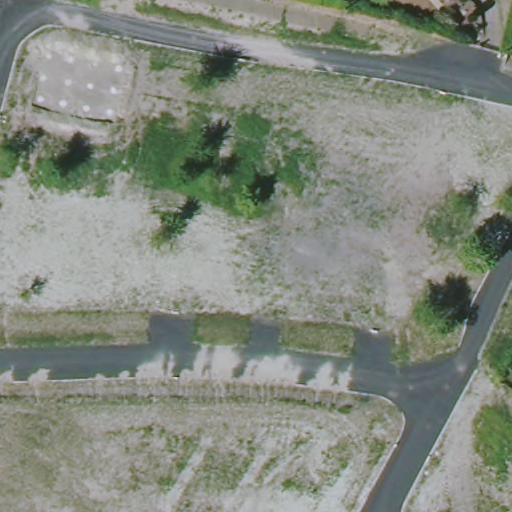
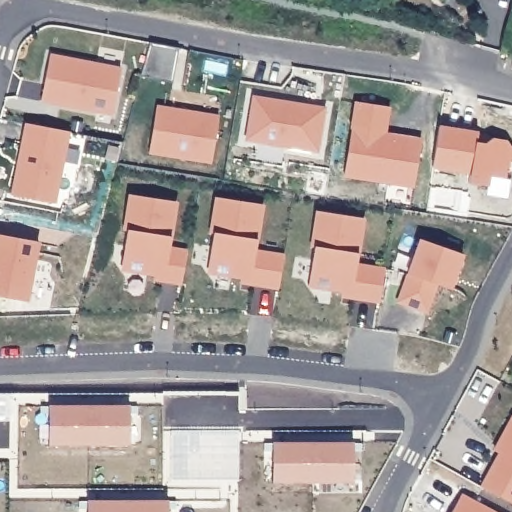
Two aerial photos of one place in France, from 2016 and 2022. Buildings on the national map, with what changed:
new [(150,41),(179,46),(170,80),(141,72),(150,41)]
new [(50,54),(120,67),(112,112),(41,99),(50,54)]
new [(253,95),(324,107),(317,150),(246,138),(253,95)]
new [(390,108),(386,132),(420,139),(413,186),(343,176),(355,102),(390,108)]
new [(156,105),(218,115),(211,161),(149,151),(156,105)]
new [(69,132),(56,202),(11,195),(24,124),(69,132)]
new [(487,186),(470,182),(472,168),(435,162),(441,126),(477,132),(475,142),(486,143),(491,137),(505,140),(512,151),(512,172),(507,197),(486,195),(487,186)]
new [(177,204),(171,237),(170,246),(187,250),(181,285),(152,281),(153,275),(121,270),(126,230),(121,229),(128,193),(177,204)]
new [(262,205),(257,241),(256,250),(283,254),(278,288),(238,282),(240,277),(207,272),(212,234),(208,232),(214,197),(262,205)]
new [(364,219),(358,254),(358,261),(385,267),(378,303),(340,297),(340,291),(310,286),(315,245),(310,240),(316,210),(364,219)]
new [(0,298),(0,237),(39,243),(28,302),(0,298)]
new [(420,237),(462,252),(450,287),(436,282),(426,310),(398,300),(420,237)]
new [(50,444),(49,406),(130,405),(130,445),(50,444)]
new [(498,442),(512,417),(512,502),(482,486),(504,446),(498,442)]
new [(272,484),(272,442),(353,442),(353,483),(272,484)]
new [(496,512),(452,512),(461,494),(496,512)]
new [(87,501),(168,501),(168,512),(88,512),(87,501)]

